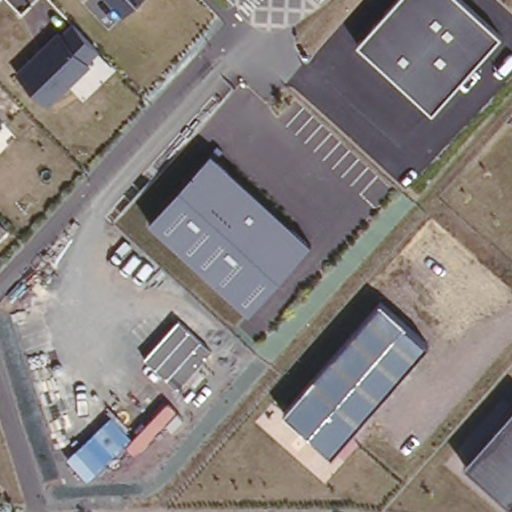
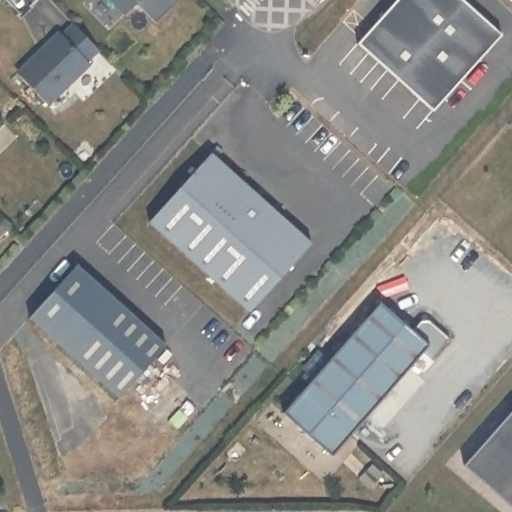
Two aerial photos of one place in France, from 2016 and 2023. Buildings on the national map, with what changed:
unchanged [(124,13),(112,0),(138,0),(124,13)]
unchanged [(433,109),(357,41),(395,0),(462,0),(500,34),(433,109)]
unchanged [(98,47),(86,60),(90,63),(49,103),(17,68),(59,29),(61,33),(72,22),(98,47)]
unchanged [(0,124),(0,121),(1,122),(0,124)]
unchanged [(311,239),(249,311),(147,221),(211,151),(311,239)]
new [(166,344),(119,396),(30,318),(77,264),(166,344)]
unchanged [(428,345),(330,454),(283,412),(380,302),(428,345)]
demolished [(179,317),(211,349),(177,386),(144,355),(179,317)]
demolished [(168,397),(87,478),(67,455),(113,414),(123,424),(158,387),(168,397)]
unchanged [(509,503),(465,464),(512,411),(512,500),(509,503)]

